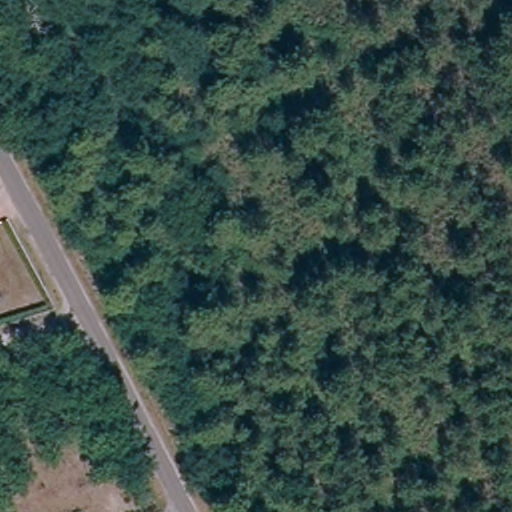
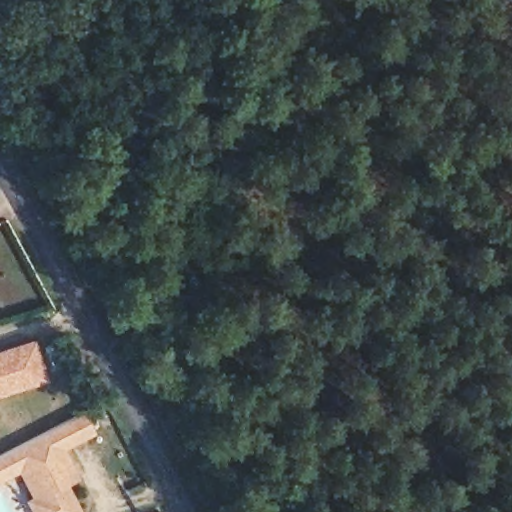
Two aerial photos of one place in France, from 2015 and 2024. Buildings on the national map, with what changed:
new [(0,395),(0,349),(34,338),(47,381),(0,395)]
new [(85,411),(95,433),(65,449),(79,478),(67,483),(82,512),(30,512),(25,500),(31,497),(19,473),(0,483),(0,454),(85,411)]

